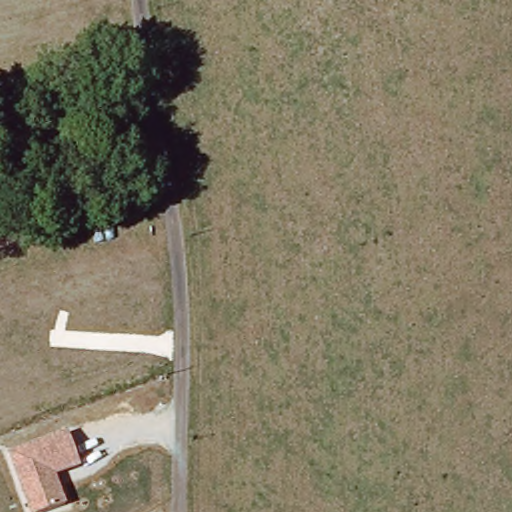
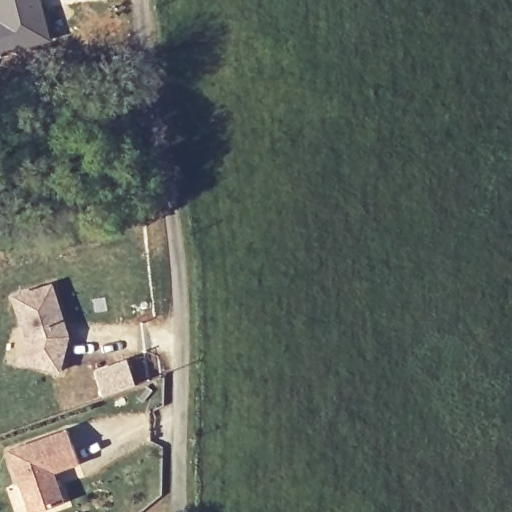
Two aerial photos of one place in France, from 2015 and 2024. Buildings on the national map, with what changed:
new [(51,43),(0,56),(0,0),(42,0),(51,43)]
new [(26,337),(13,300),(55,285),(73,337),(61,376),(20,363),(26,337)]
unchanged [(58,475),(66,502),(39,512),(31,512),(9,451),(68,430),(81,466),(58,475)]

